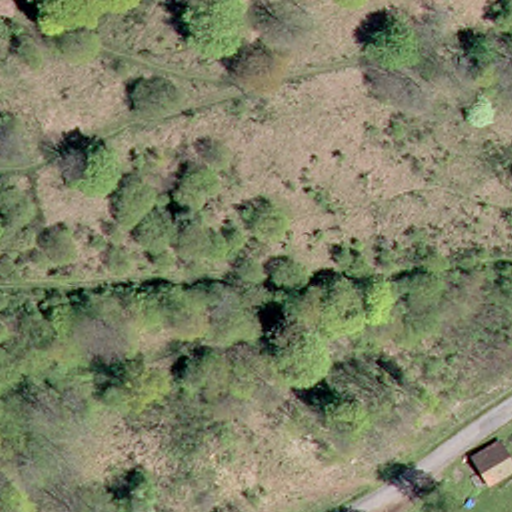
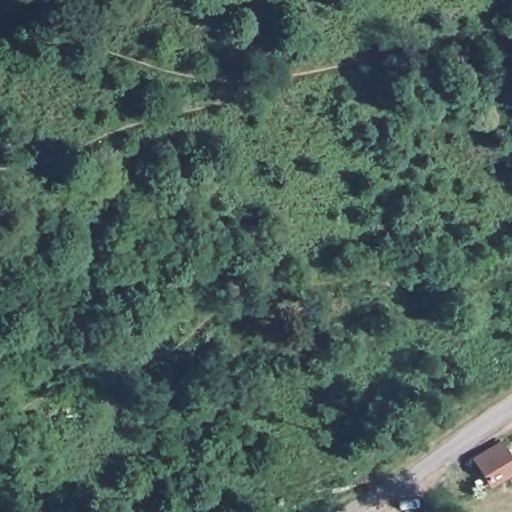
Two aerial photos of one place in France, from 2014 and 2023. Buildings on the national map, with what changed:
unchanged [(501,436),(512,460),(512,461),(493,470),(474,476),(465,453),(501,436)]

